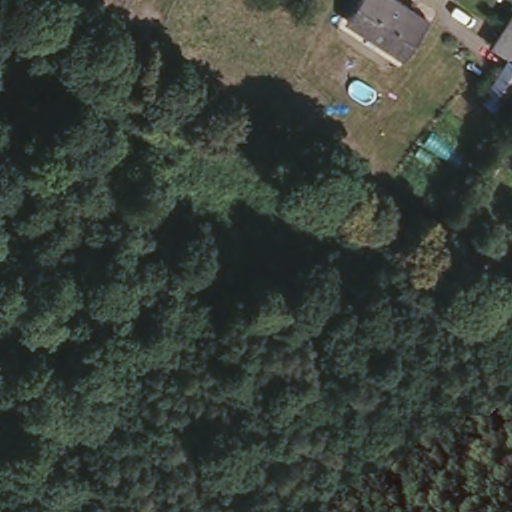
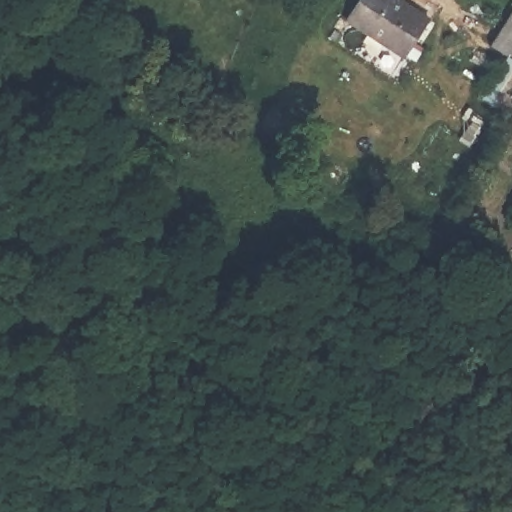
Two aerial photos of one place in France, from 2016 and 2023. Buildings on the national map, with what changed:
unchanged [(404,62),(342,30),(356,0),(387,0),(425,20),(404,62)]
unchanged [(478,103),(506,57),(486,47),(512,12),(512,113),(506,121),(478,103)]

